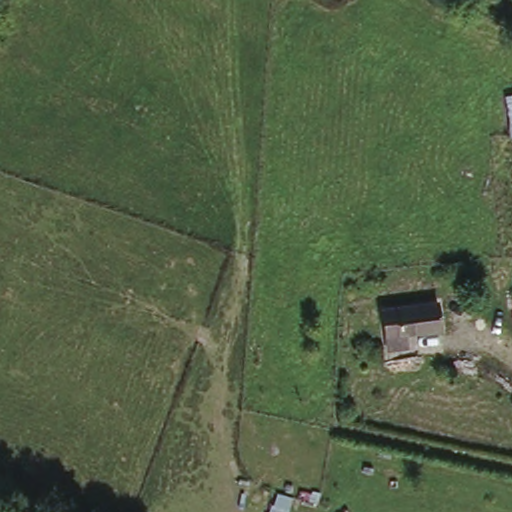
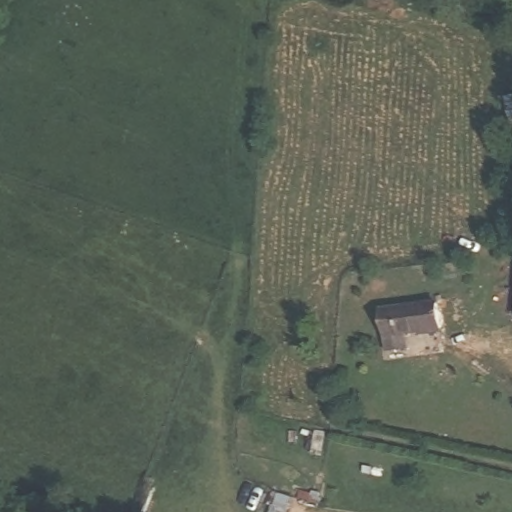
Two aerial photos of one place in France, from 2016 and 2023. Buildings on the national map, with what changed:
unchanged [(512,91),(512,120),(509,91),(512,91)]
unchanged [(378,310),(433,302),(437,330),(423,332),(423,329),(395,332),(382,334),(381,328),(378,310)]

